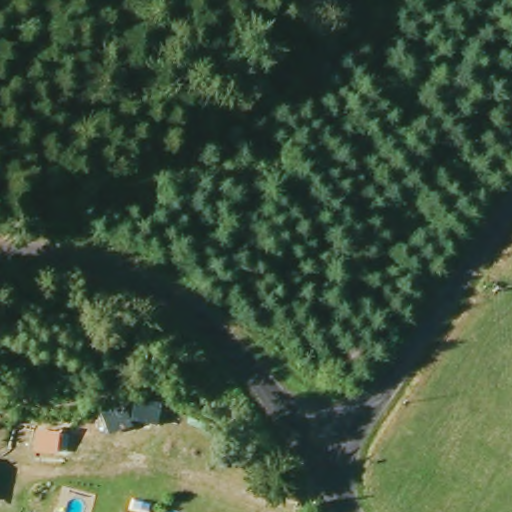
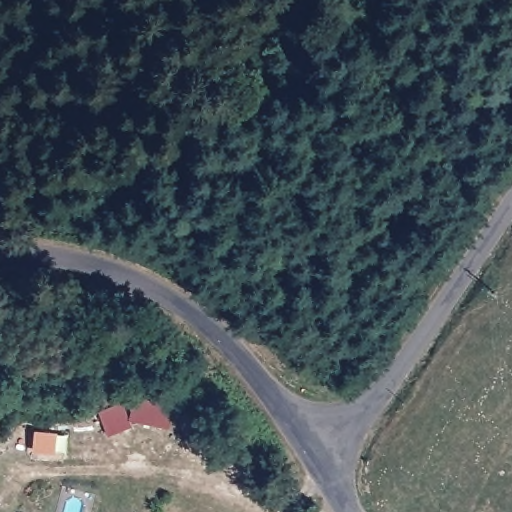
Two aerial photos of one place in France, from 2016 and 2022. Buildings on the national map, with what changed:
unchanged [(155,420),(130,416),(136,394),(160,399),(155,420)]
unchanged [(117,430),(106,409),(121,402),(131,424),(117,430)]

